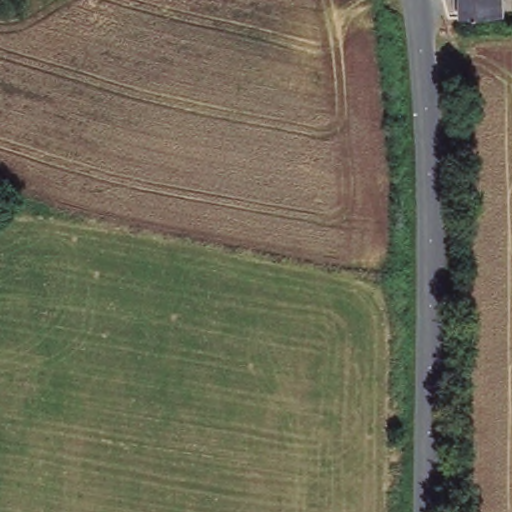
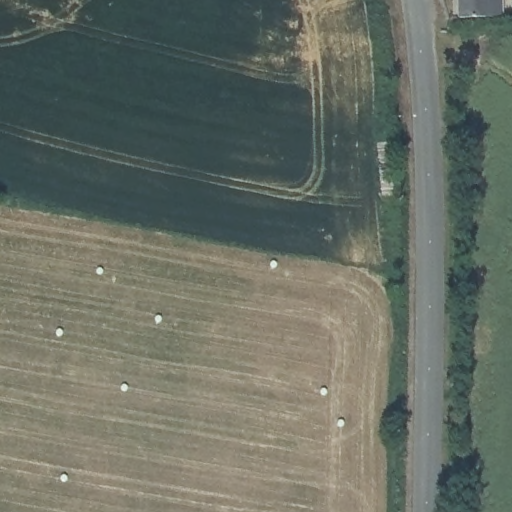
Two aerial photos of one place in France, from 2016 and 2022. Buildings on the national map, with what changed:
unchanged [(502,17),(460,17),(459,0),(502,0),(502,17)]

